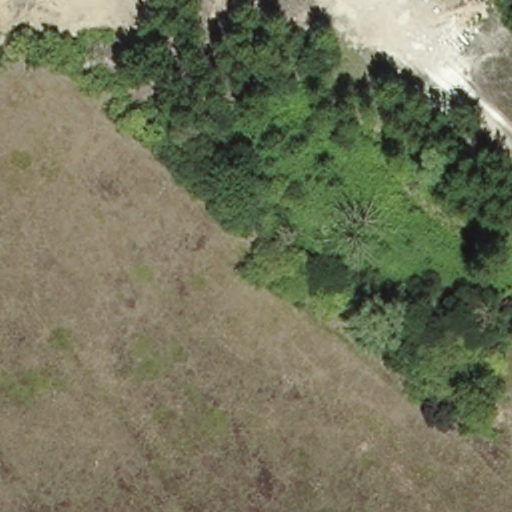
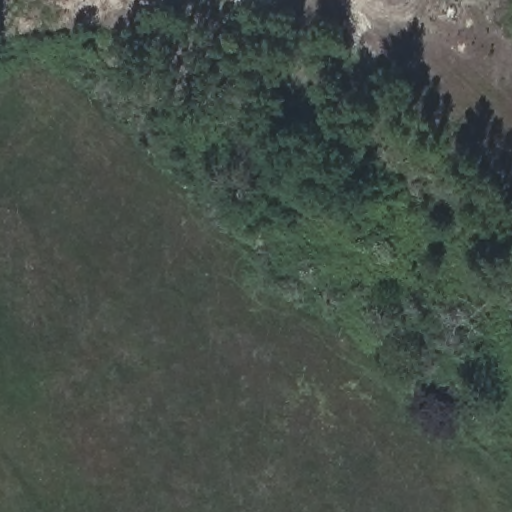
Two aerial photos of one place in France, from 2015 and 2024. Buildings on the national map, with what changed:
[]

